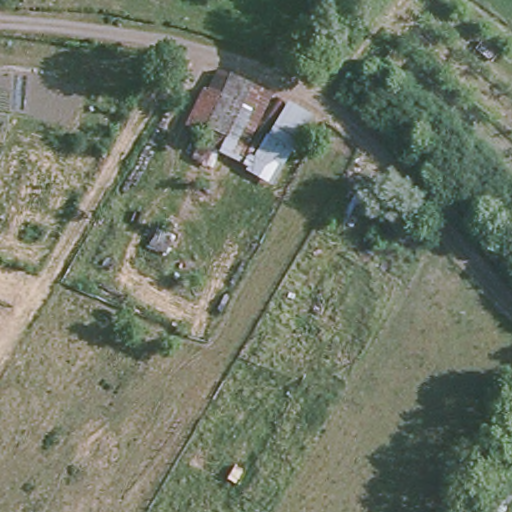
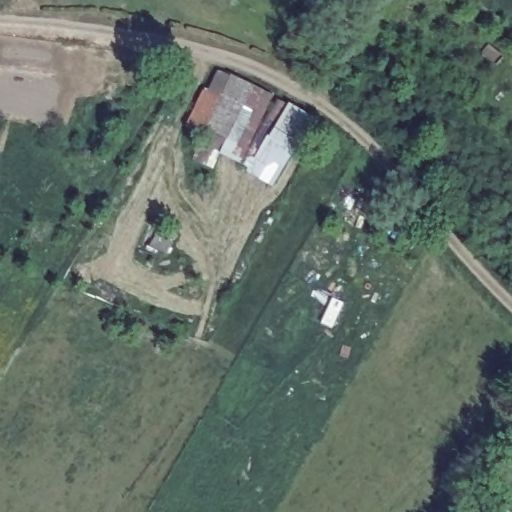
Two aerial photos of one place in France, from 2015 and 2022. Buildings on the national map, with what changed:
unchanged [(196,138),(214,81),(313,117),(274,184),(196,138)]

